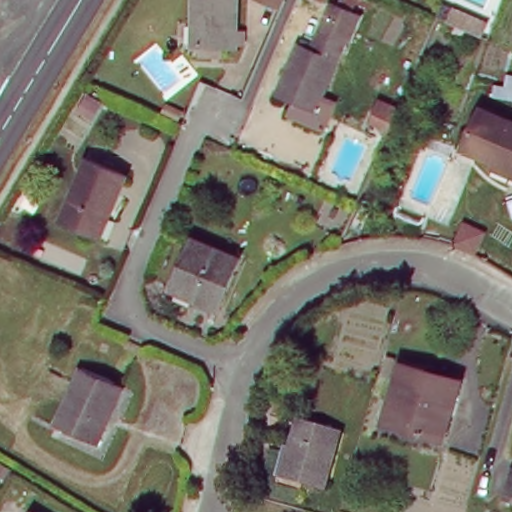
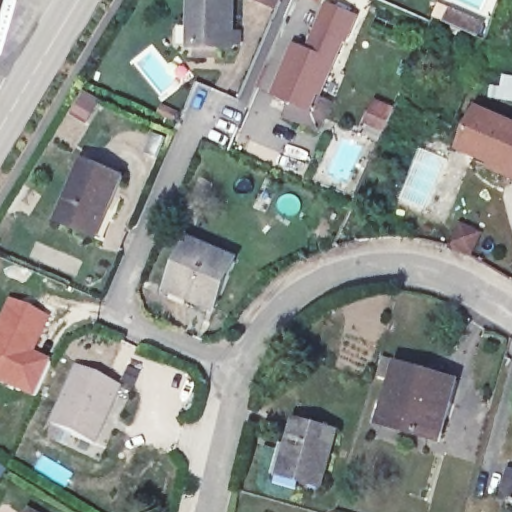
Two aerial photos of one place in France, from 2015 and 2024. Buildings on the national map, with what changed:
unchanged [(180,44),(181,0),(223,0),(222,46),(180,44)]
demolished [(249,0),(271,0),(267,9),(249,0)]
unchanged [(263,0),(281,0),(278,7),(263,0)]
new [(318,0),(324,0),(323,2),(318,0)]
unchanged [(318,124),(287,110),(292,99),(275,91),(297,41),(310,46),(330,2),(360,16),(348,40),(346,39),(321,95),(330,99),(318,124)]
unchanged [(493,168),(495,163),(461,149),(478,109),(512,124),(512,176),(493,168)]
unchanged [(102,241),(91,236),(58,222),(84,161),(122,177),(107,210),(114,212),(102,241)]
unchanged [(217,307),(172,287),(193,238),(239,259),(217,307)]
new [(48,317),(35,352),(55,360),(37,401),(0,384),(0,320),(10,300),(48,317)]
unchanged [(115,398),(95,442),(53,422),(51,421),(76,371),(80,364),(122,384),(115,398)]
unchanged [(381,423),(392,386),(423,395),(450,402),(440,439),(381,423)]
unchanged [(322,487),(282,475),(297,421),(337,432),(322,487)]
new [(0,482),(0,467),(7,471),(0,482)]
unchanged [(512,468),(512,503),(502,500),(510,467),(512,468)]

